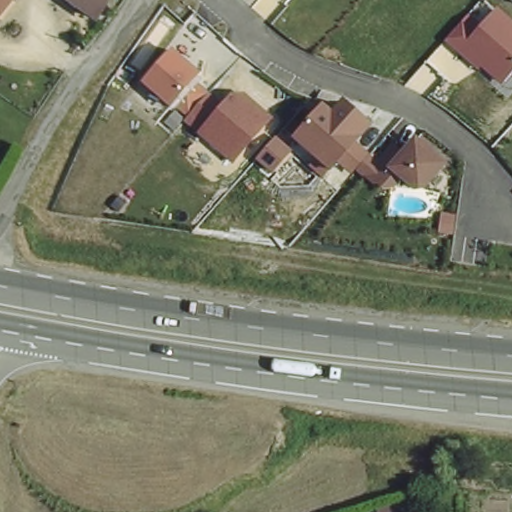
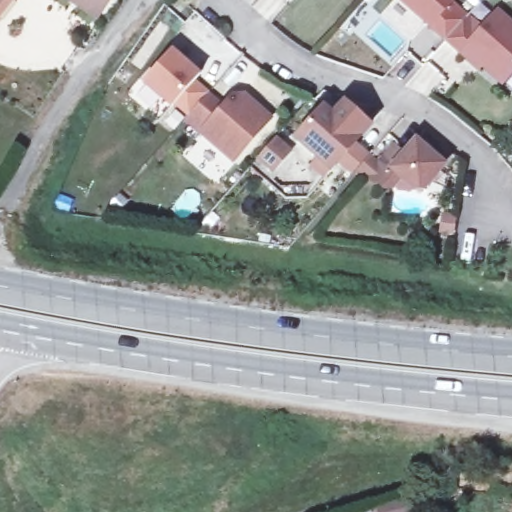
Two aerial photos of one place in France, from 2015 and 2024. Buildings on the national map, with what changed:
unchanged [(1,0),(0,2),(0,0),(1,0)]
unchanged [(98,0),(90,12),(73,0),(98,0)]
new [(425,27),(393,0),(461,0),(462,1),(455,9),(469,12),(444,43),(427,29),(425,27)]
unchanged [(484,25),(497,9),(512,22),(512,75),(504,85),(482,67),(478,72),(444,43),(469,12),(484,25)]
unchanged [(198,81),(211,92),(189,117),(176,107),(174,109),(143,84),(173,48),(203,75),(198,81)]
unchanged [(236,164),(198,135),(233,92),(248,94),(276,119),(236,164)]
unchanged [(327,180),(310,166),(316,157),(292,139),(324,102),(335,110),(345,98),(375,125),(327,180)]
unchanged [(427,192),(415,192),(403,182),(395,191),(384,192),(358,171),(372,154),(390,171),(418,137),(451,164),(427,192)]
new [(266,143),(281,156),(263,177),(248,164),(266,143)]

